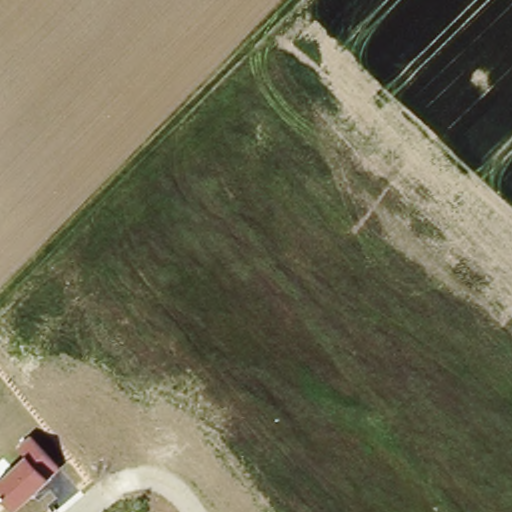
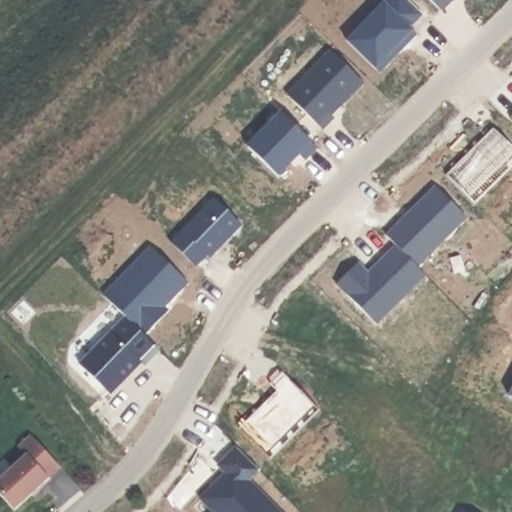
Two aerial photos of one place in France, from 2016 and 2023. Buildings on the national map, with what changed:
new [(379,70),(375,68),(345,38),(382,0),(410,0),(422,11),(409,25),(412,29),(415,32),(379,70)]
new [(440,9),(431,0),(449,0),(440,9)]
new [(330,49),(362,80),(330,113),(332,115),(321,127),(286,93),(330,49)]
new [(280,111),(315,145),(303,158),(297,152),(276,174),(246,145),(280,111)]
new [(435,184),(466,215),(417,266),(395,244),(385,233),(435,184)]
new [(357,261),(369,273),(373,268),(374,265),(395,244),(417,266),(425,274),(375,323),(335,282),(357,261)]
new [(160,316),(143,334),(125,318),(101,294),(138,255),(149,245),(155,251),(187,281),(162,306),(167,309),(160,316)]
new [(125,318),(143,334),(159,350),(144,366),(141,363),(127,378),(125,376),(118,383),(120,385),(110,395),(80,365),(125,318)]
unchanged [(0,479),(27,454),(19,446),(31,435),(60,466),(15,509),(0,493),(0,479)]
new [(214,486),(217,489),(229,475),(217,465),(235,446),(258,469),(247,480),(281,512),(213,512),(200,499),(214,486)]

